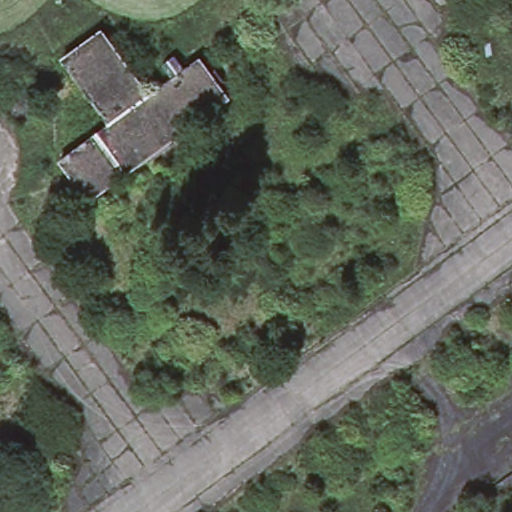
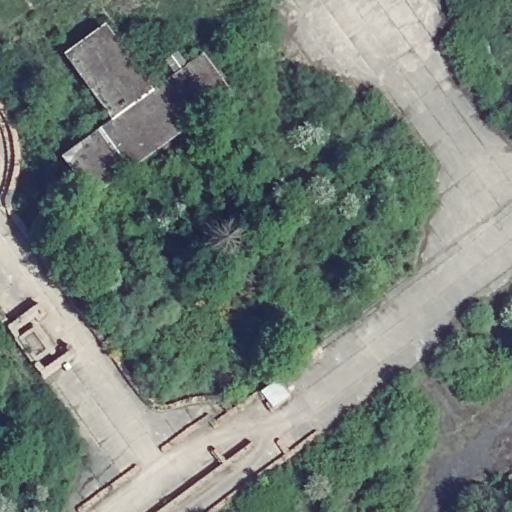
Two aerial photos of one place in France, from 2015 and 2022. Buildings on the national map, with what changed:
unchanged [(85,197),(58,155),(108,120),(66,60),(107,31),(147,92),(192,62),(219,102),(85,197)]

